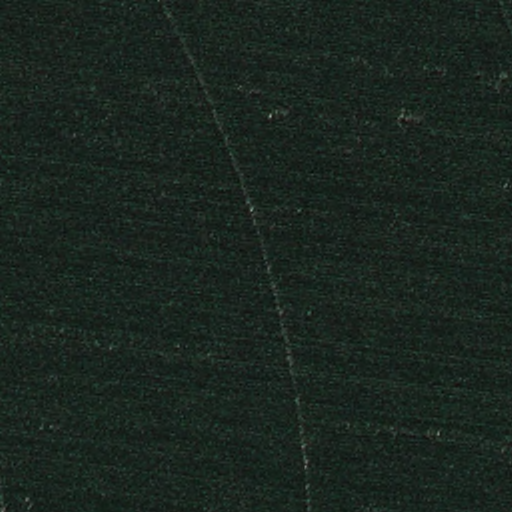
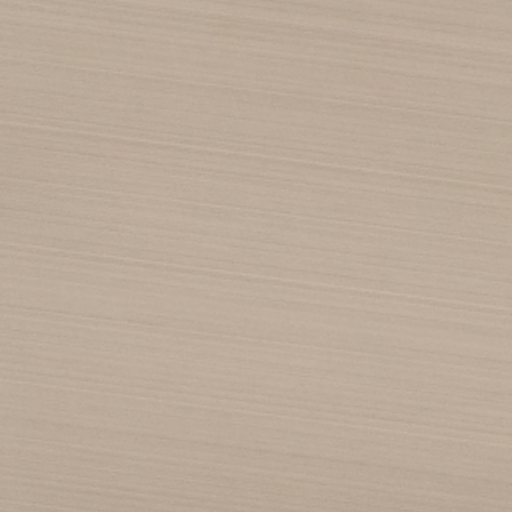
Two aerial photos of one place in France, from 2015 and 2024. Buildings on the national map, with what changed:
[]

